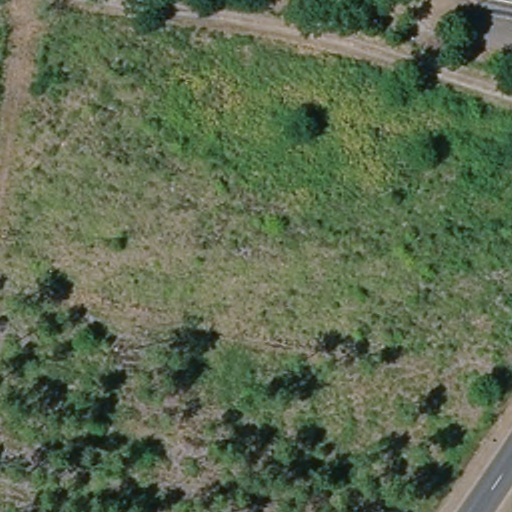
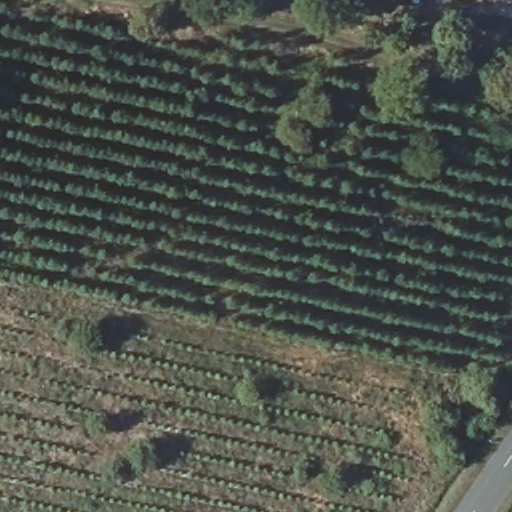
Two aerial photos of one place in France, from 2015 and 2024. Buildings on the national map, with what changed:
[]

